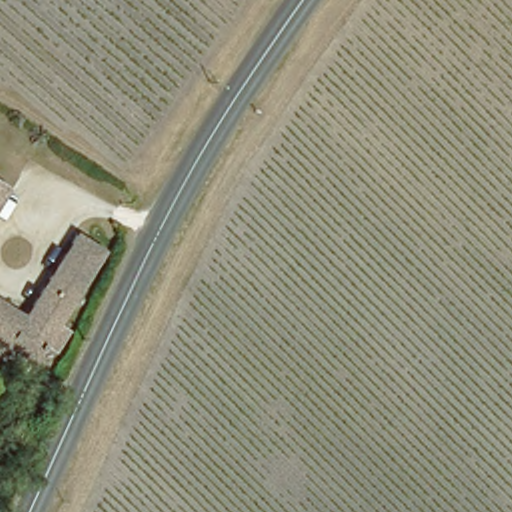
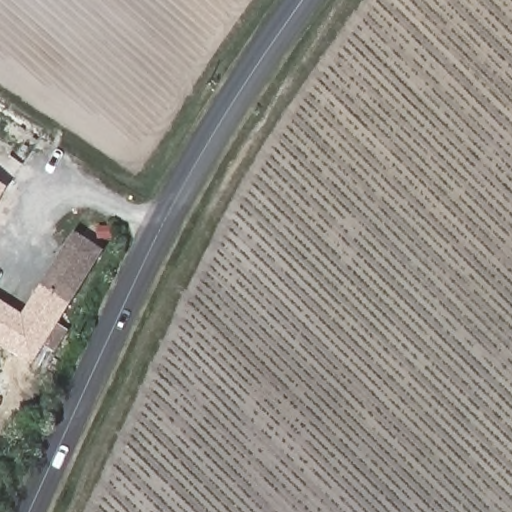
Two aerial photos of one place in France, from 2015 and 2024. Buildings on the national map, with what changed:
unchanged [(9,185),(0,198),(0,179),(9,185)]
unchanged [(24,310),(76,228),(104,246),(57,319),(68,326),(55,346),(45,340),(33,358),(0,337),(0,295),(24,310)]

